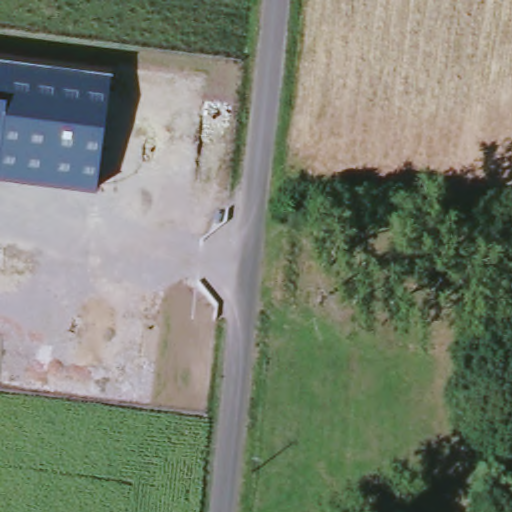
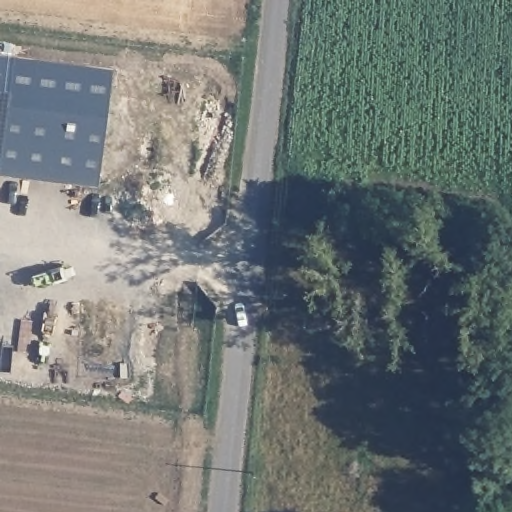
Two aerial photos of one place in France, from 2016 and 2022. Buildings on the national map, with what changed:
unchanged [(0,176),(0,55),(112,69),(98,188),(0,176)]

